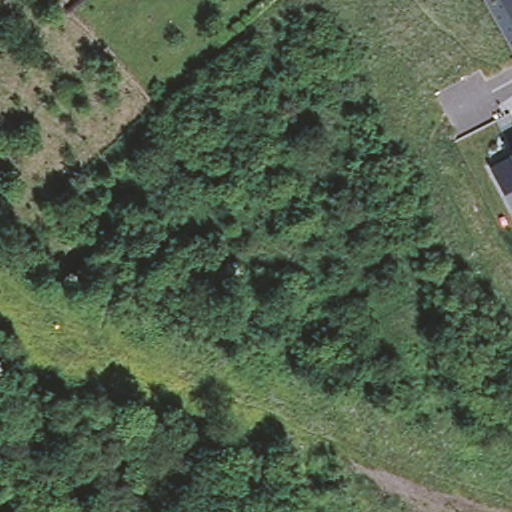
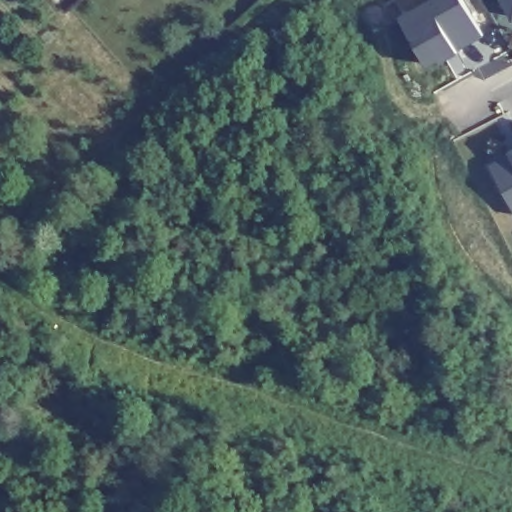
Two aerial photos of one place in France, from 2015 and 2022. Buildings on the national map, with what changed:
new [(482,35),(427,65),(401,16),(429,0),(464,0),(482,35)]
unchanged [(511,20),(501,0),(512,0),(512,19),(511,20)]
unchanged [(492,165),(512,155),(511,150),(512,149),(512,204),(492,165)]

